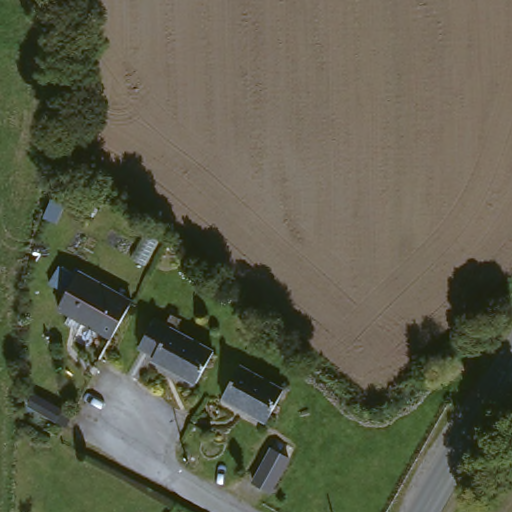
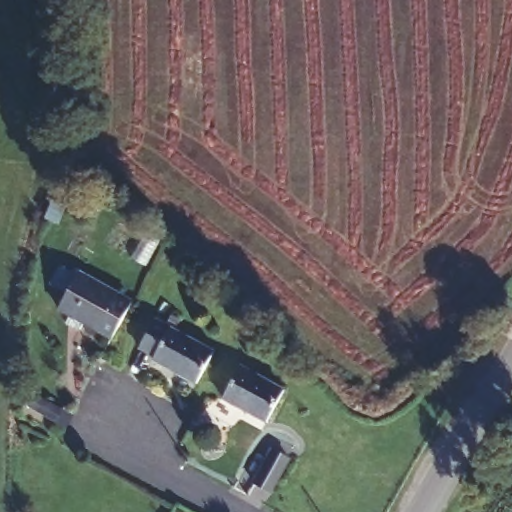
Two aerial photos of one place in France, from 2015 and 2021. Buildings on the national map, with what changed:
unchanged [(53,305),(61,290),(56,288),(43,281),(52,263),(65,270),(69,272),(124,300),(109,332),(108,333),(93,325),(53,305)]
unchanged [(171,327),(174,325),(214,351),(196,383),(154,357),(153,354),(139,344),(158,318),(171,327)]
unchanged [(286,392),(267,424),(225,397),(244,366),(286,392)]
unchanged [(38,398),(59,409),(52,421),(32,410),(38,398)]
unchanged [(292,456),(273,494),(250,482),(270,446),(292,456)]

